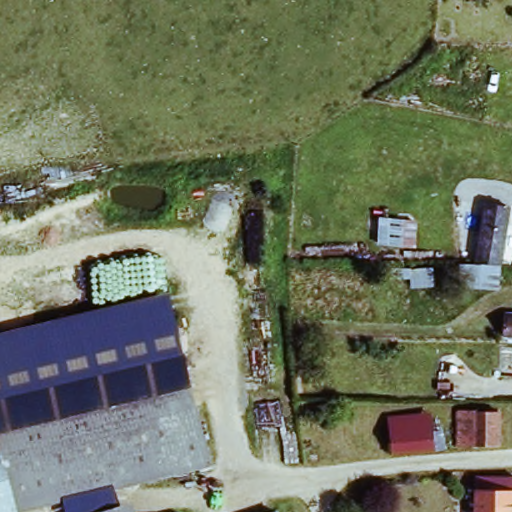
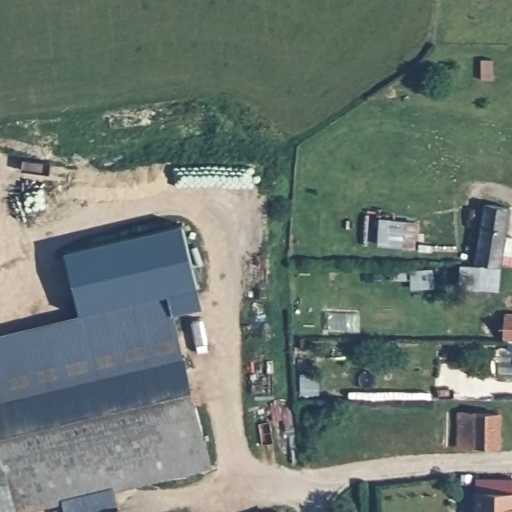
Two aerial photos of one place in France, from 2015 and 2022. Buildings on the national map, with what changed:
unchanged [(507,205),(505,262),(480,261),(482,203),(507,205)]
new [(184,221),(200,286),(168,296),(80,316),(65,250),(184,221)]
unchanged [(69,512),(66,505),(36,512),(0,512),(0,334),(168,296),(213,467),(115,491),(120,507),(98,512),(69,512)]
unchanged [(503,408),(503,442),(445,442),(444,408),(503,408)]
new [(390,419),(430,414),(433,452),(392,456),(390,419)]
demolished [(385,467),(379,445),(402,439),(440,430),(444,452),(430,456),(385,467)]
unchanged [(475,486),(512,487),(512,512),(475,512),(475,501),(475,486)]
unchanged [(136,502),(138,512),(122,512),(120,507),(136,502)]
unchanged [(122,512),(98,512),(120,507),(122,512)]

